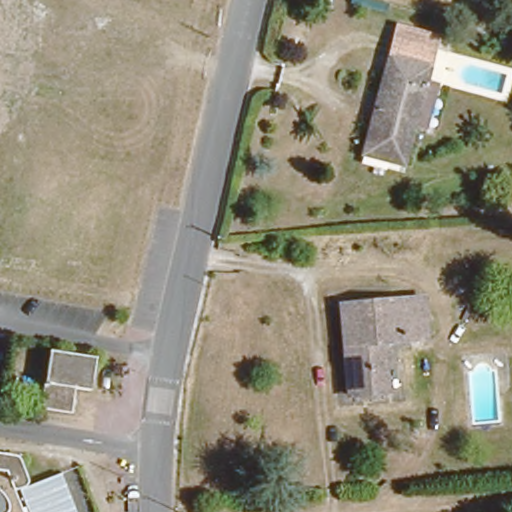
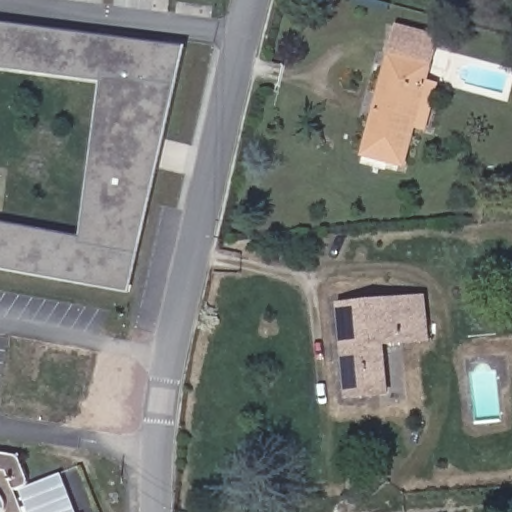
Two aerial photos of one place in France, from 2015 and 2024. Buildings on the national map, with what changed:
new [(0,71),(0,21),(187,46),(130,294),(0,270),(0,221),(81,235),(99,84),(0,71)]
unchanged [(397,23),(437,34),(429,63),(402,164),(362,153),(389,51),(397,23)]
unchanged [(427,337),(383,342),(386,393),(349,395),(343,306),(423,299),(427,337)]
unchanged [(88,389),(71,388),(69,411),(36,407),(41,351),(89,356),(88,389)]
unchanged [(26,471),(18,490),(25,512),(0,512),(0,451),(13,450),(26,471)]

